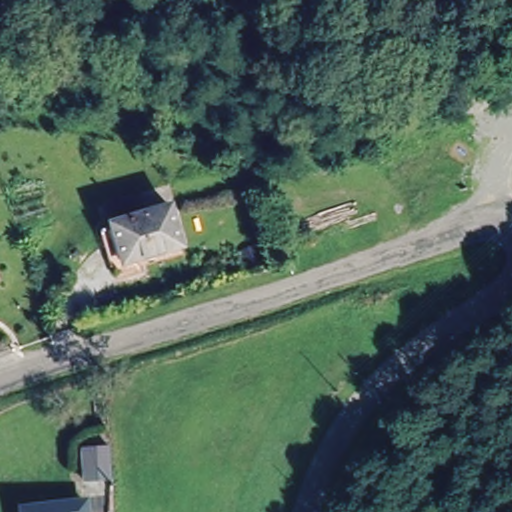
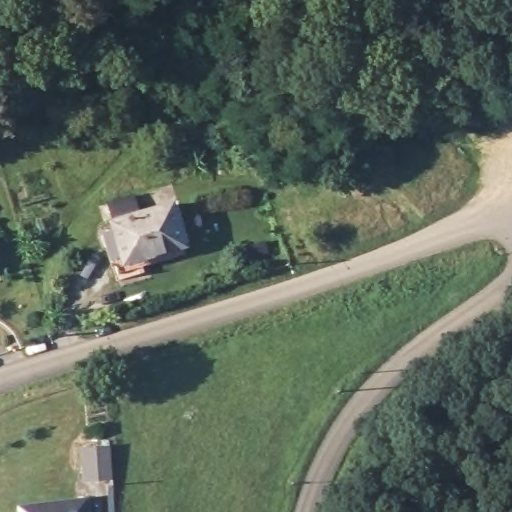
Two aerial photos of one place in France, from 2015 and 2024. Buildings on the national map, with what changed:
unchanged [(172,235),(114,250),(101,210),(160,194),(172,235)]
unchanged [(103,471),(71,473),(69,440),(100,438),(103,471)]
unchanged [(79,503),(79,512),(14,512),(14,508),(79,503)]

